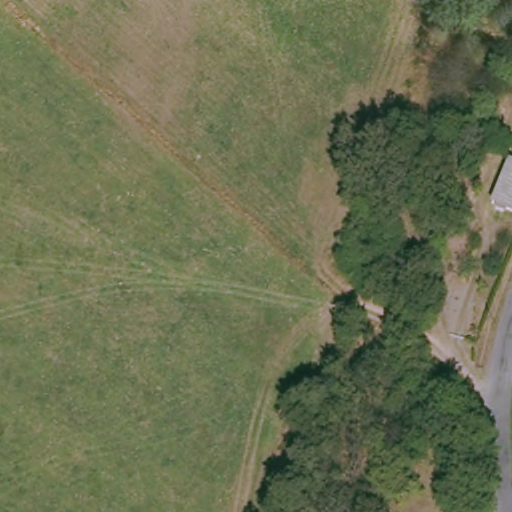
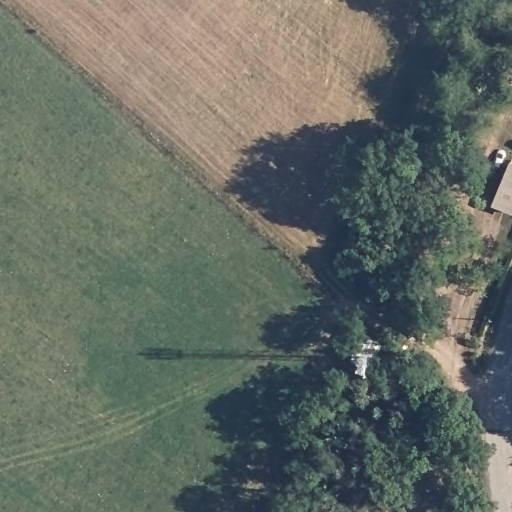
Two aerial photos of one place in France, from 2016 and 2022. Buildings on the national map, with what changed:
unchanged [(509,157),(512,158),(512,212),(492,205),(509,157)]

